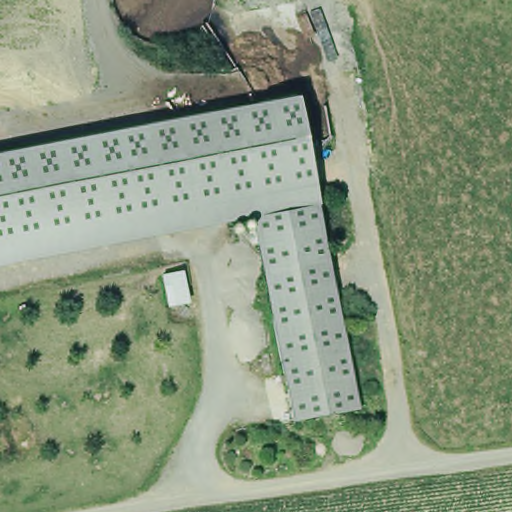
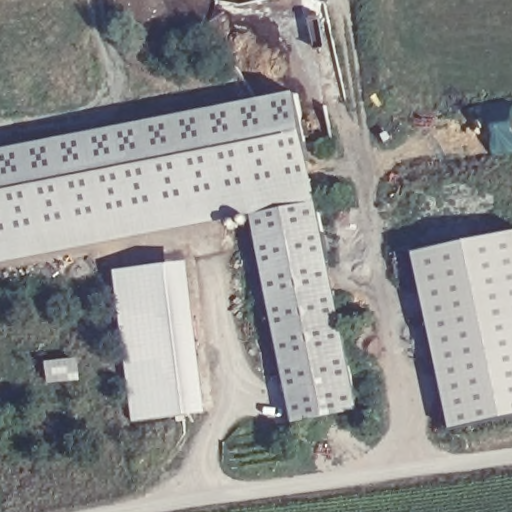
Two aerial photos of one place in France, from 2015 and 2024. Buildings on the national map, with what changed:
unchanged [(302,94),(362,413),(295,426),(260,227),(235,234),(232,231),(231,227),(230,222),(0,266),(0,153),(302,94)]
new [(512,417),(453,428),(417,252),(512,232),(512,417)]
new [(191,261),(208,412),(132,422),(114,269),(191,261)]
new [(80,357),(82,381),(45,385),(42,361),(80,357)]

